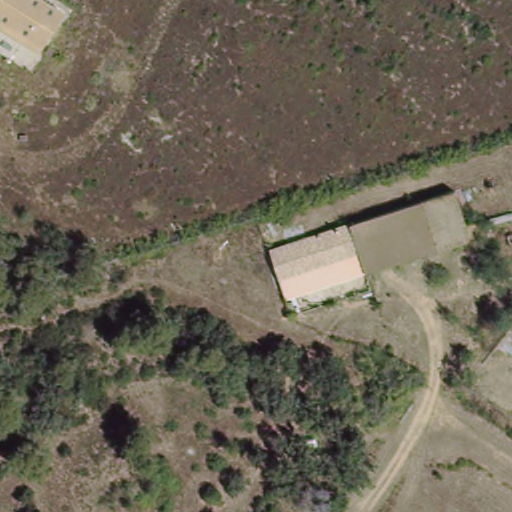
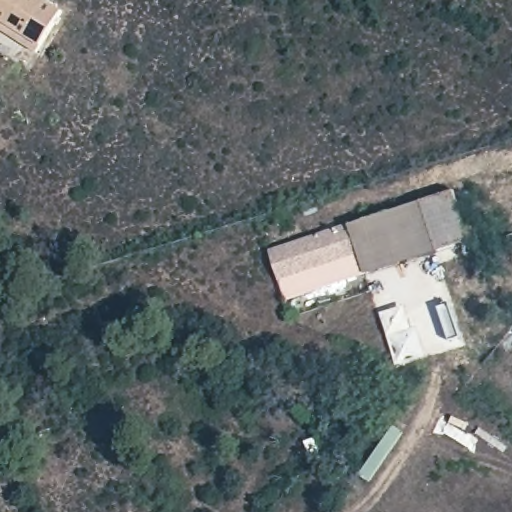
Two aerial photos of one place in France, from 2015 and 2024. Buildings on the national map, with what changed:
unchanged [(67,22),(42,64),(26,53),(0,37),(0,0),(34,0),(67,22)]
unchanged [(459,189),(474,242),(291,297),(275,246),(459,189)]

